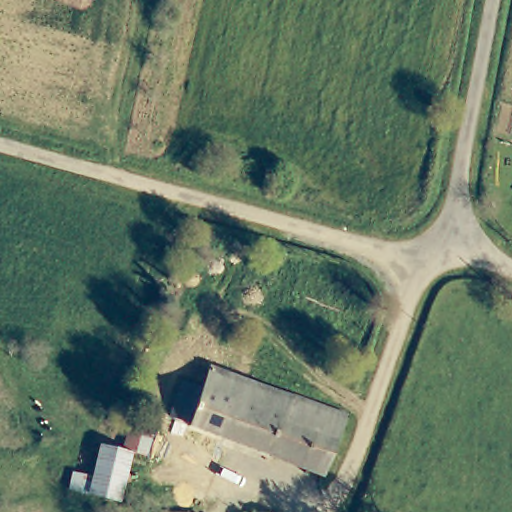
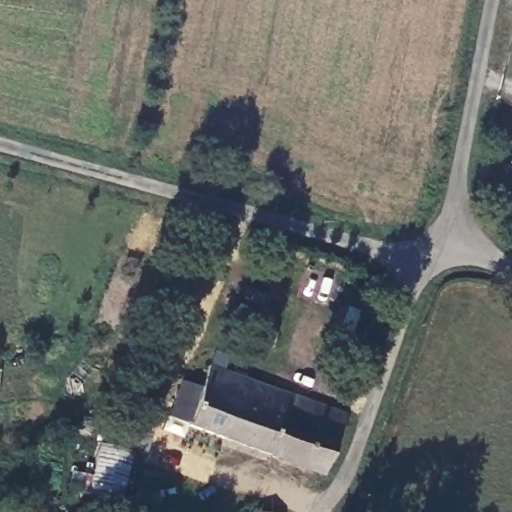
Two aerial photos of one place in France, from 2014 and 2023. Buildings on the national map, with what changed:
unchanged [(189,429),(208,368),(347,416),(326,477),(189,429)]
unchanged [(118,450),(126,418),(148,424),(139,456),(128,454),(117,502),(85,495),(96,445),(118,450)]

